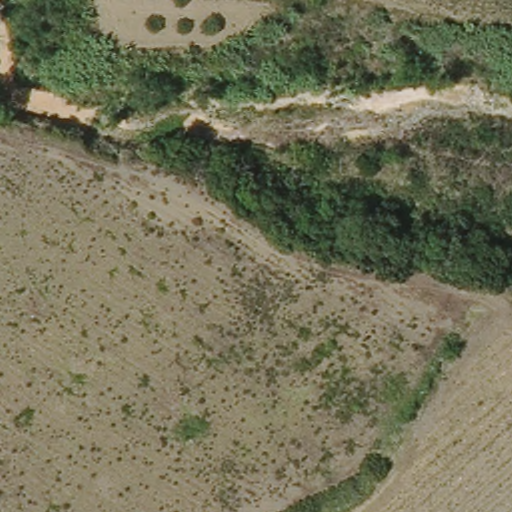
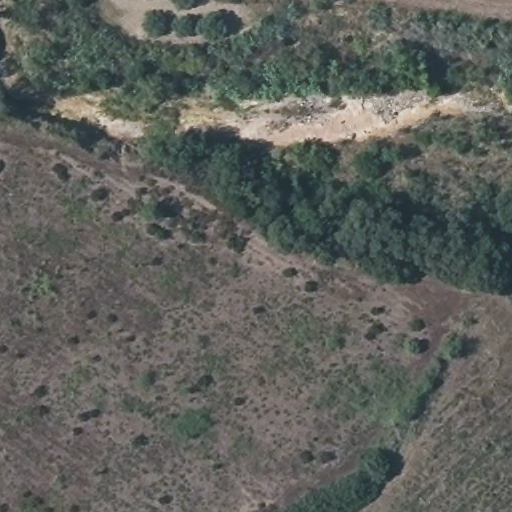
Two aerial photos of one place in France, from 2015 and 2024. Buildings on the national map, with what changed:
[]

